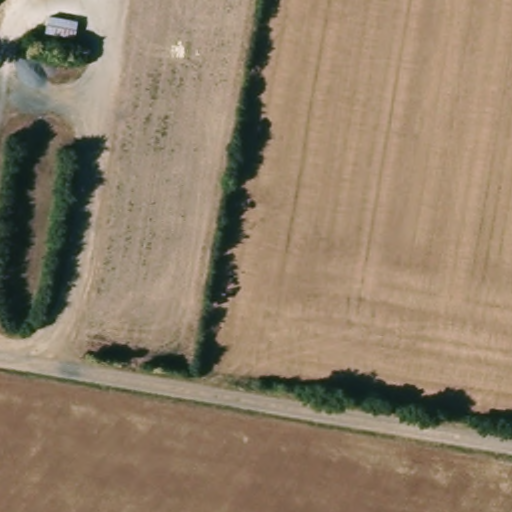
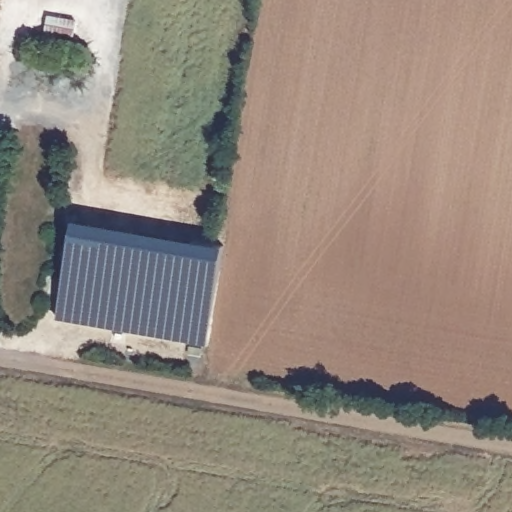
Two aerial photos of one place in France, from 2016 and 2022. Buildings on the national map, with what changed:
new [(57,318),(74,220),(224,247),(206,345),(57,318)]

